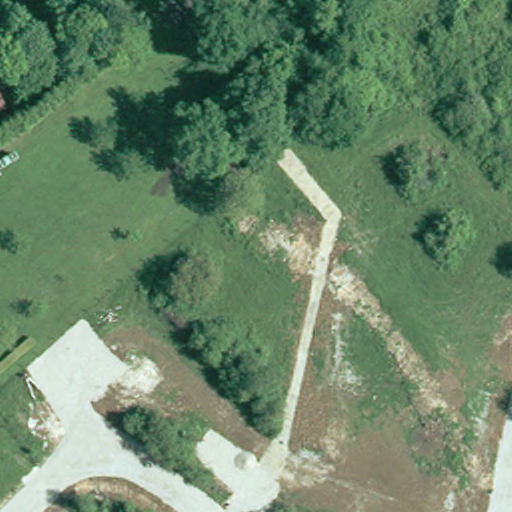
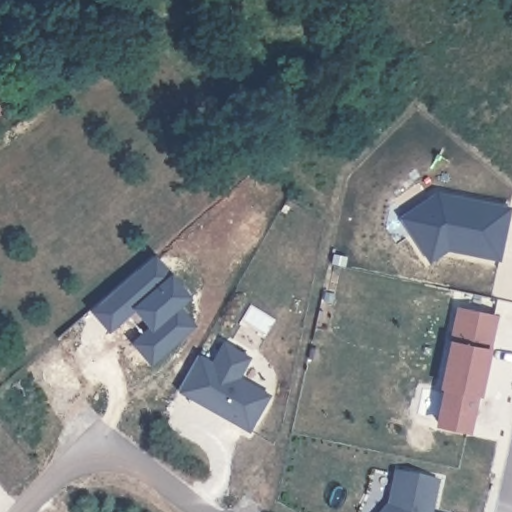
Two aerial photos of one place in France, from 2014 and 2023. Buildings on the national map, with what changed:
unchanged [(3,108),(0,109),(0,102),(3,108)]
new [(437,194),(509,208),(499,260),(461,253),(463,245),(449,243),(450,241),(443,239),(440,251),(428,259),(399,218),(437,194)]
new [(109,330),(92,309),(139,268),(154,255),(172,275),(189,297),(178,306),(194,325),(151,363),(133,343),(143,334),(127,315),(109,330)]
new [(497,314),(491,347),(481,396),(478,394),(471,431),(433,424),(449,337),(455,305),(497,314)]
new [(270,396),(268,400),(249,431),(178,390),(198,355),(213,363),(223,343),(250,358),(238,379),(239,378),(270,396)]
new [(439,479),(433,512),(378,512),(387,502),(393,471),(439,479)]

